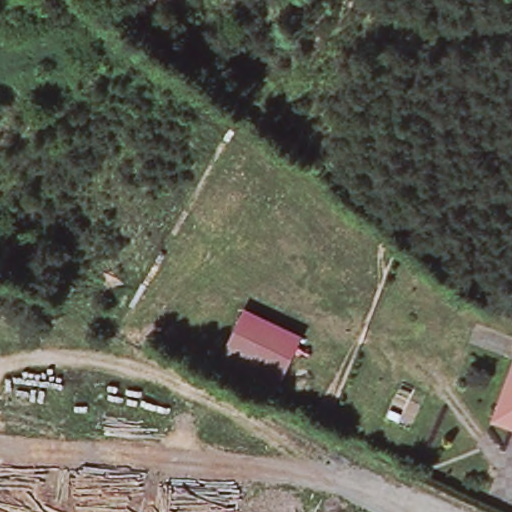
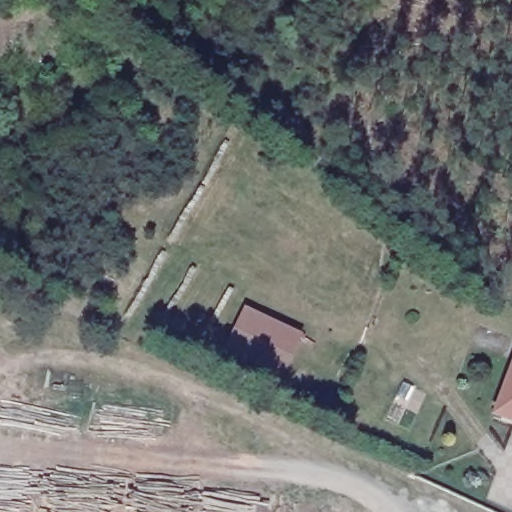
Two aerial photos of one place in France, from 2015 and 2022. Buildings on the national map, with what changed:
unchanged [(293,355),(273,395),(215,368),(233,327),(293,355)]
unchanged [(512,359),(512,423),(491,415),(512,359)]

